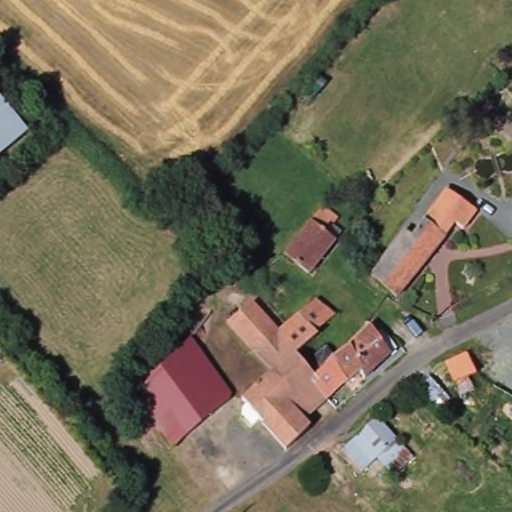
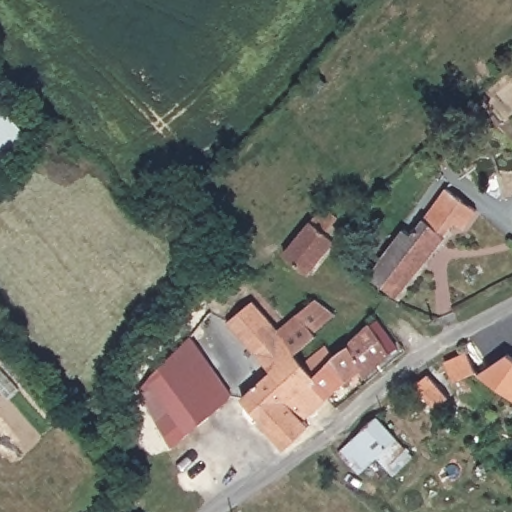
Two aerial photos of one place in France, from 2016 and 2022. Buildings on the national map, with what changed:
unchanged [(0,157),(0,104),(26,136),(0,157)]
unchanged [(456,191),(465,197),(484,214),(470,232),(458,224),(416,273),(396,296),(371,274),(388,253),(407,232),(414,237),(453,194),(456,191)]
unchanged [(323,207),(338,219),(333,225),(341,232),(333,241),(305,275),(284,255),(323,207)]
unchanged [(310,428),(287,451),(283,446),(263,422),(254,431),(249,425),(244,419),(245,411),(249,407),(244,401),(276,371),(230,330),(252,306),(279,332),(286,326),(297,316),(314,300),(317,303),(333,315),(313,333),(317,337),(296,357),(305,367),(327,348),(334,357),(348,345),(370,324),(378,332),(383,327),(400,344),(366,377),(355,388),(350,383),(348,384),(342,390),(332,398),(317,411),(305,422),(310,428)]
unchanged [(196,347),(225,386),(235,400),(236,402),(214,420),(192,391),(171,407),(150,382),(191,340),(196,347)]
unchanged [(462,349),(470,368),(462,372),(471,391),(457,398),(439,359),(462,349)]
new [(480,373),(507,355),(512,358),(512,397),(480,373)]
unchanged [(427,377),(449,398),(436,411),(411,390),(427,377)]
unchanged [(171,407),(192,391),(214,420),(175,452),(145,402),(143,390),(150,382),(171,407)]
unchanged [(413,459),(393,477),(376,459),(359,476),(338,453),(349,443),(375,418),(413,459)]

